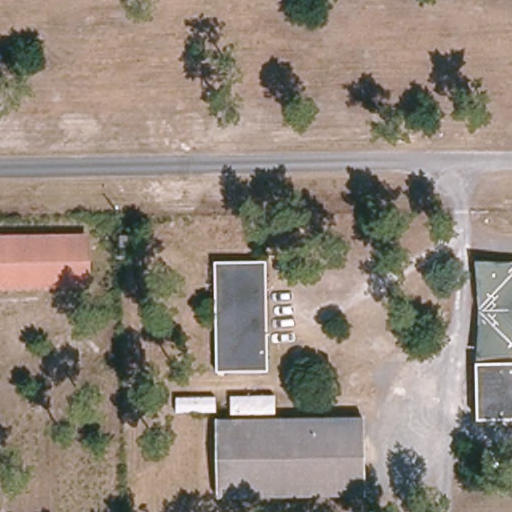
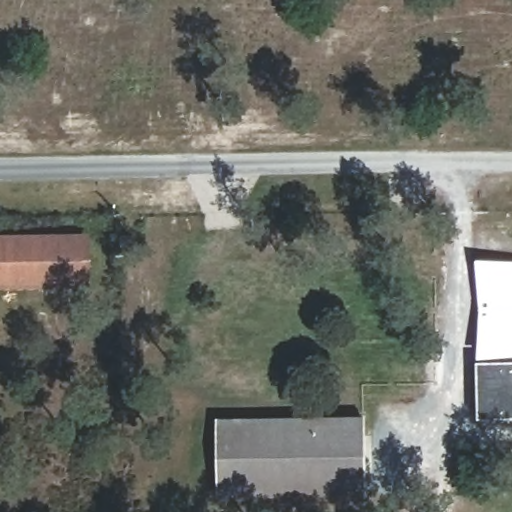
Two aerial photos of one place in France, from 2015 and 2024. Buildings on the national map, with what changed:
unchanged [(129,237),(129,248),(119,248),(119,237),(129,237)]
unchanged [(0,286),(0,238),(84,238),(84,285),(0,286)]
demolished [(264,262),(265,372),(215,373),(212,262),(264,262)]
unchanged [(478,265),(512,265),(512,419),(480,420),(478,265)]
unchanged [(361,419),(362,493),(216,496),(216,422),(361,419)]
demolished [(512,491),(512,512),(495,512),(495,492),(512,491)]

